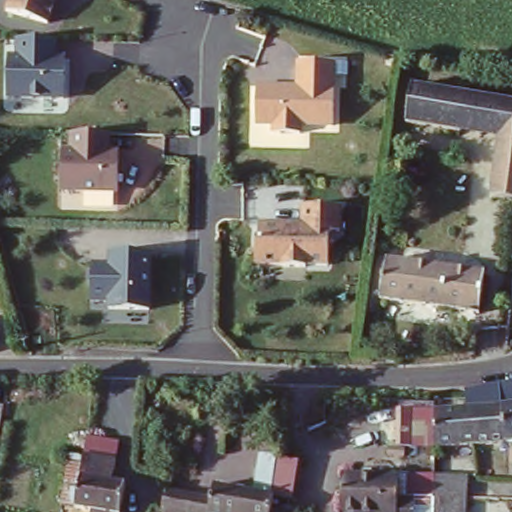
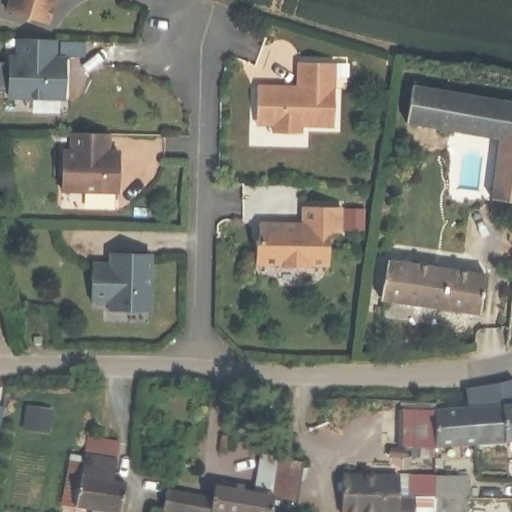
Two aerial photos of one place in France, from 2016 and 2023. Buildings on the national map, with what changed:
unchanged [(50,22),(3,8),(6,0),(57,0),(50,22)]
unchanged [(9,99),(9,57),(18,57),(18,40),(57,42),(58,55),(64,55),(62,99),(9,99)]
unchanged [(294,86),(295,61),(333,62),(333,126),(259,129),(259,87),(294,86)]
unchanged [(461,130),(405,122),(411,87),(468,94),(461,130)]
unchanged [(461,130),(468,94),(504,99),(498,136),(461,130)]
unchanged [(498,136),(504,99),(512,100),(512,199),(489,195),(498,136)]
unchanged [(65,192),(64,147),(66,147),(70,146),(70,133),(109,132),(109,146),(121,147),(120,190),(65,192)]
unchanged [(260,219),(299,221),(299,208),(340,207),(341,230),(324,243),(322,267),(259,266),(260,219)]
unchanged [(151,311),(112,312),(111,300),(95,300),(94,261),(105,264),(107,251),(152,253),(151,311)]
unchanged [(486,268),(481,309),(381,299),(386,258),(386,257),(486,268)]
unchanged [(469,409),(467,390),(467,385),(493,383),(512,381),(512,445),(473,445),(469,409)]
unchanged [(427,444),(427,411),(469,409),(473,445),(427,444)]
unchanged [(5,412),(0,435),(0,411),(5,412)]
unchanged [(111,481),(126,484),(122,512),(119,512),(61,502),(69,459),(86,461),(90,441),(117,445),(111,481)]
unchanged [(171,484),(194,488),(210,492),(213,480),(251,487),(257,462),(261,448),(278,451),(275,466),(265,512),(219,512),(207,509),(206,512),(166,512),(167,507),(171,484)]
unchanged [(379,512),(378,511),(368,512),(342,512),(340,475),(396,471),(399,512),(379,512)]
unchanged [(468,512),(432,512),(433,505),(412,506),(408,478),(469,475),(468,512)]

